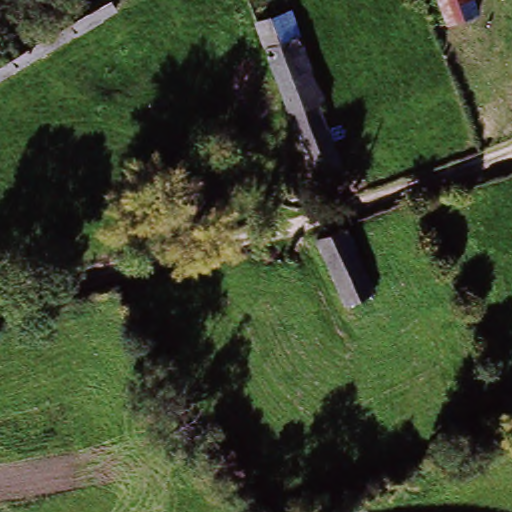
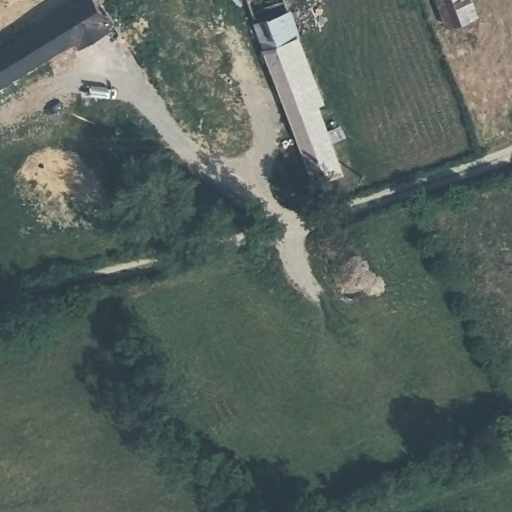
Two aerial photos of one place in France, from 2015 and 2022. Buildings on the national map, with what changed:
unchanged [(123,0),(126,5),(0,83),(0,48),(77,0),(123,0)]
unchanged [(331,143),(343,174),(311,187),(242,0),(278,0),(316,101),(309,104),(319,132),(329,128),(334,131),(338,140),(331,143)]
unchanged [(469,0),(483,33),(459,43),(452,26),(444,29),(434,0),(469,0)]
unchanged [(380,306),(354,318),(324,250),(349,239),(353,245),(380,306)]

